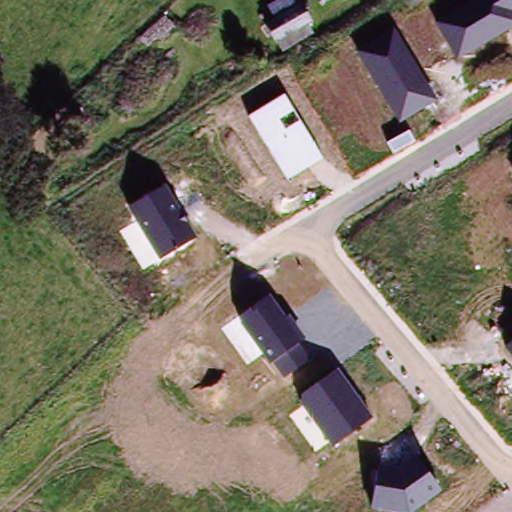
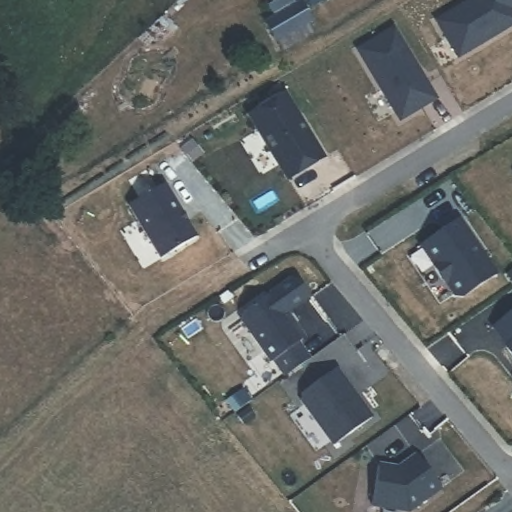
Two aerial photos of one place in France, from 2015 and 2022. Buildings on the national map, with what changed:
unchanged [(512,13),(512,27),(458,58),(435,22),(473,0),(512,0),(512,11),(511,12),(512,13)]
unchanged [(307,20),(276,39),(266,22),(297,4),(307,20)]
unchanged [(400,122),(357,52),(394,29),(436,100),(400,122)]
unchanged [(287,177),(249,117),(284,95),(322,158),(287,177)]
unchanged [(161,258),(129,206),(166,185),(196,236),(161,258)]
new [(456,216),(470,237),(468,239),(478,255),(480,253),(492,271),(458,293),(452,292),(443,278),(441,279),(428,260),(429,259),(418,242),(456,216)]
unchanged [(284,377),(272,361),(270,362),(240,323),(241,316),(270,295),(285,316),(288,314),(304,338),(297,343),(309,358),(284,377)]
unchanged [(512,343),(512,356),(505,348),(512,343)]
unchanged [(300,402),(302,393),(337,369),(372,417),(332,446),(300,402)]
unchanged [(371,506),(379,467),(399,470),(418,457),(441,491),(410,512),(404,512),(371,506)]

